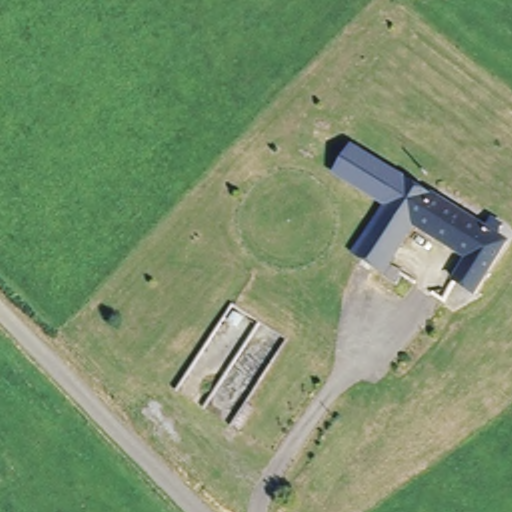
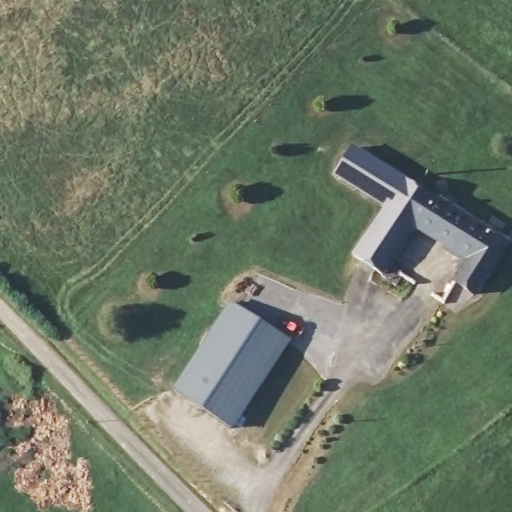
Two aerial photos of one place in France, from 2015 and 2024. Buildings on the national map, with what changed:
unchanged [(351,145),(405,179),(505,241),(474,291),(453,275),(464,256),(415,225),(390,263),(407,274),(398,285),(351,255),(384,205),(333,173),(351,145)]
new [(290,338),(232,428),(172,389),(230,301),(290,338)]

